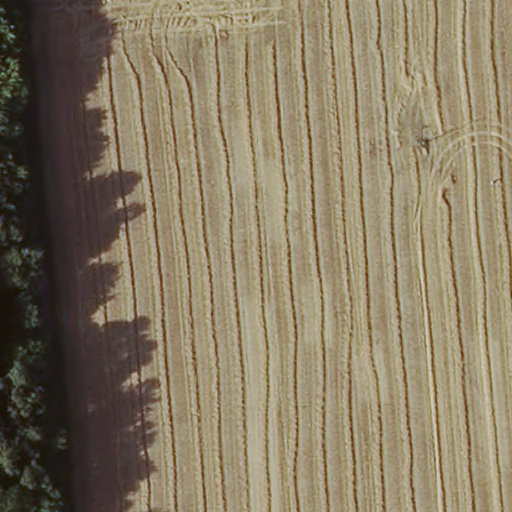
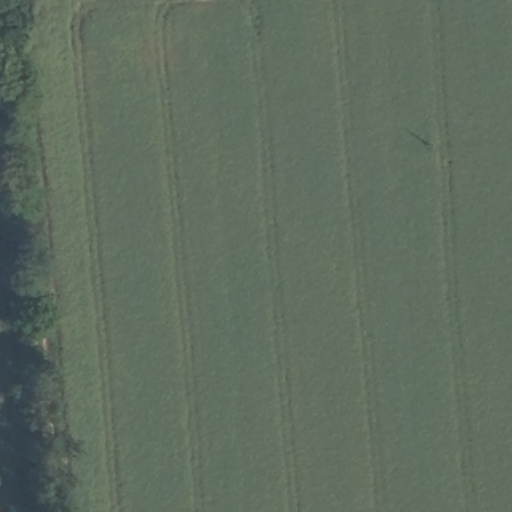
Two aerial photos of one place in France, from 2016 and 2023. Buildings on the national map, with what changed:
[]

